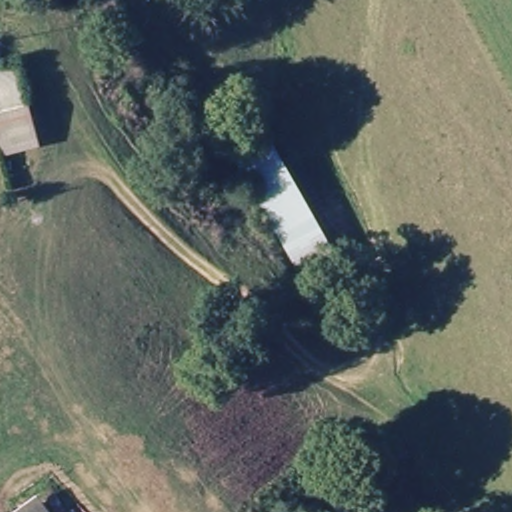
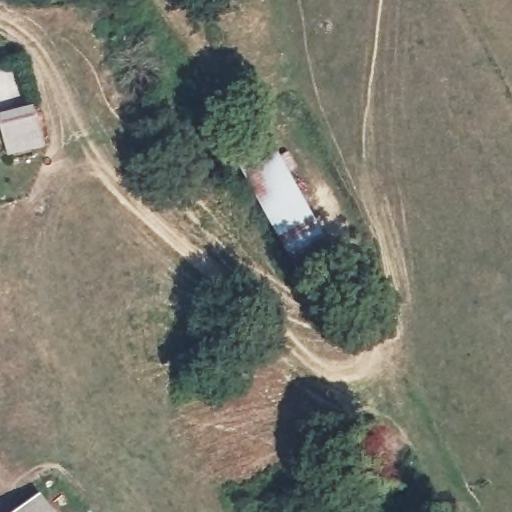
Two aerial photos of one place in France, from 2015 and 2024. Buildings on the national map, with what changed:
unchanged [(51,130),(14,137),(6,104),(44,96),(51,130)]
unchanged [(276,141),(333,248),(303,265),(246,156),(276,141)]
unchanged [(46,485),(65,512),(38,512),(28,498),(46,485)]
unchanged [(28,498),(38,512),(9,512),(28,498)]

